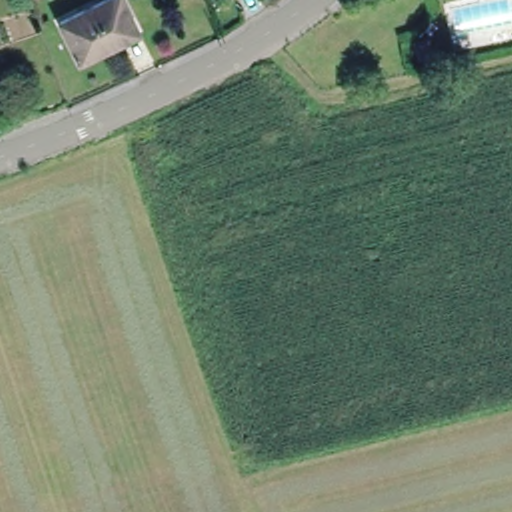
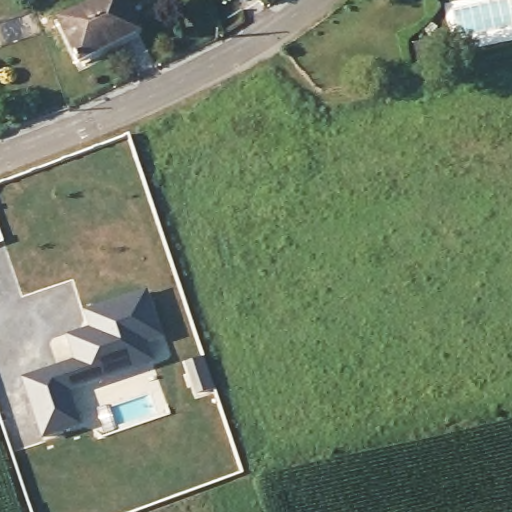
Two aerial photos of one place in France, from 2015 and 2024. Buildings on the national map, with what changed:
unchanged [(100,49),(101,52),(80,62),(60,22),(104,0),(123,0),(137,30),(100,49)]
new [(78,361),(70,337),(90,330),(92,325),(87,312),(147,292),(162,336),(105,355),(112,375),(67,390),(59,367),(78,361)]
new [(59,367),(67,390),(70,396),(35,408),(25,378),(59,367)]
new [(70,396),(80,425),(44,436),(35,408),(70,396)]

